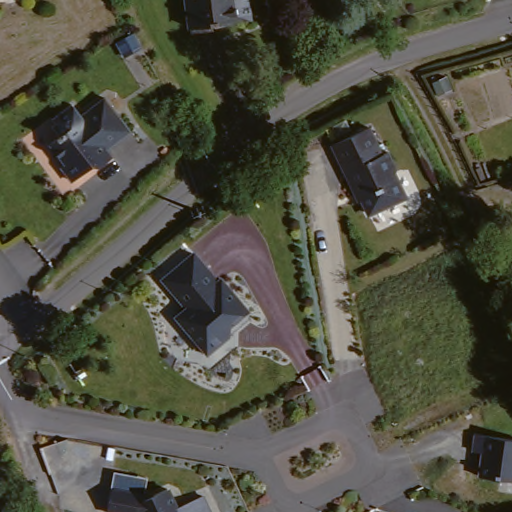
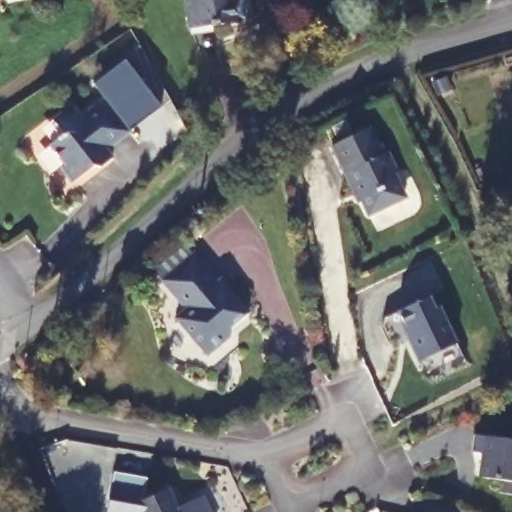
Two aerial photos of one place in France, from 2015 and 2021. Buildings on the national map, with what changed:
unchanged [(241,21),(240,21),(224,23),(180,27),(177,0),(240,0),(241,21)]
new [(143,47),(124,58),(115,42),(134,32),(143,47)]
new [(105,107),(94,84),(125,60),(160,106),(123,134),(105,107)]
unchanged [(80,124),(105,107),(129,143),(104,160),(108,166),(95,175),(88,175),(67,189),(57,173),(60,171),(47,150),(62,140),(52,125),(72,112),(80,124)]
unchanged [(362,132),(376,158),(382,155),(391,173),(390,179),(401,200),(366,219),(359,205),(344,177),(340,179),(325,152),(362,132)]
unchanged [(219,283),(221,280),(251,311),(234,327),(234,334),(212,355),(192,334),(179,320),(188,312),(189,311),(187,308),(164,283),(179,269),(193,255),(219,283)]
new [(430,294),(436,307),(441,305),(458,342),(418,361),(403,330),(406,328),(398,311),(430,294)]
unchanged [(471,450),(475,433),(512,440),(512,482),(477,478),(480,452),(471,450)]
unchanged [(174,494),(182,512),(102,512),(104,486),(174,494)]

